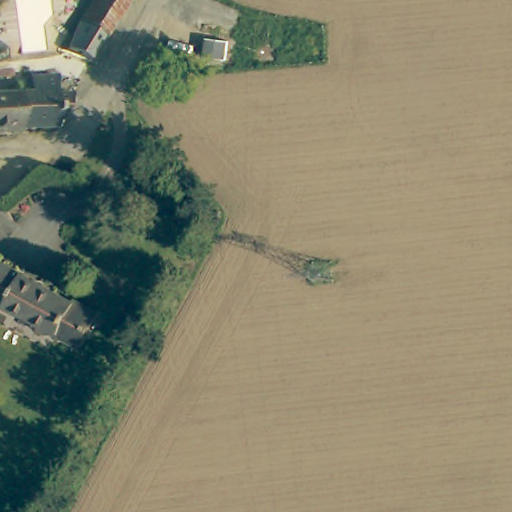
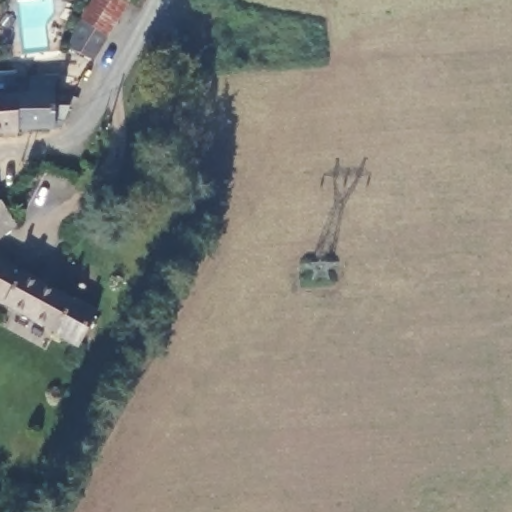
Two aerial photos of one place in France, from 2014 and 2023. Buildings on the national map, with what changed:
unchanged [(63,50),(79,25),(93,0),(129,0),(104,41),(86,65),(63,50)]
unchanged [(21,102),(23,89),(52,92),(52,106),(82,108),(56,137),(12,136),(13,101),(21,102)]
unchanged [(13,101),(12,136),(0,135),(0,100),(13,101)]
unchanged [(3,199),(18,227),(0,241),(0,201),(3,199)]
unchanged [(75,300),(77,297),(101,307),(83,343),(0,303),(0,264),(75,300)]

